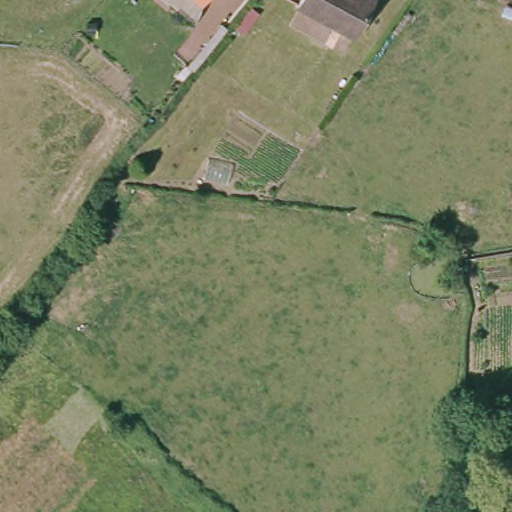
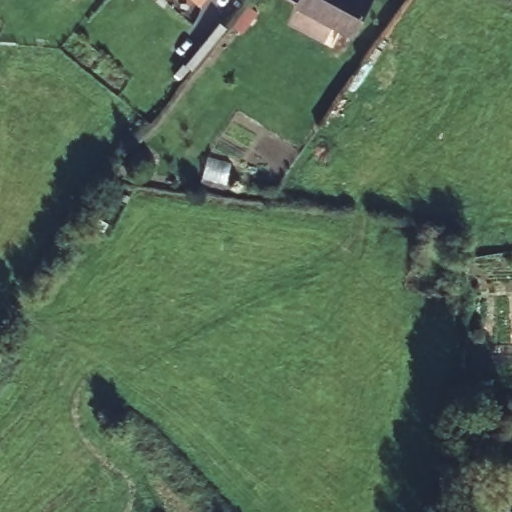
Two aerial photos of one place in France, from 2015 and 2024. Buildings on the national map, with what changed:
unchanged [(194,0),(205,0),(200,6),(194,0)]
unchanged [(297,3),(299,0),(366,0),(370,3),(345,38),(297,3)]

